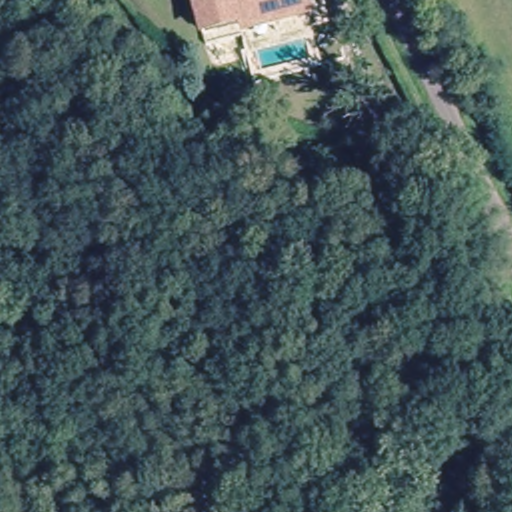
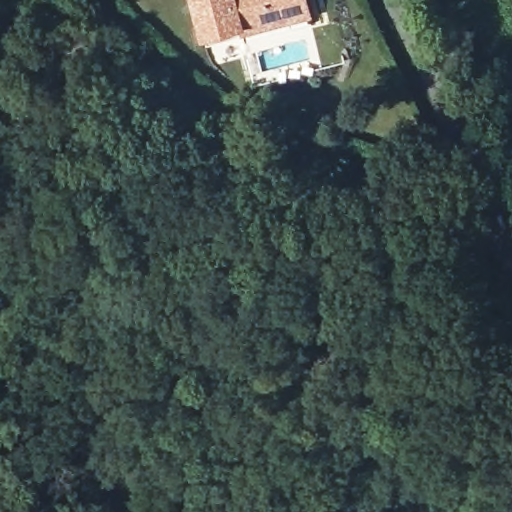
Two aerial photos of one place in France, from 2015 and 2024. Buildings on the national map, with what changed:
unchanged [(239,29),(238,25),(203,34),(195,0),(302,0),(305,11),(289,16),(239,29)]

